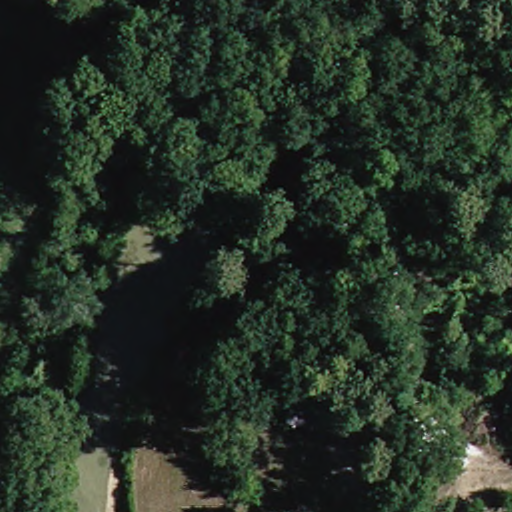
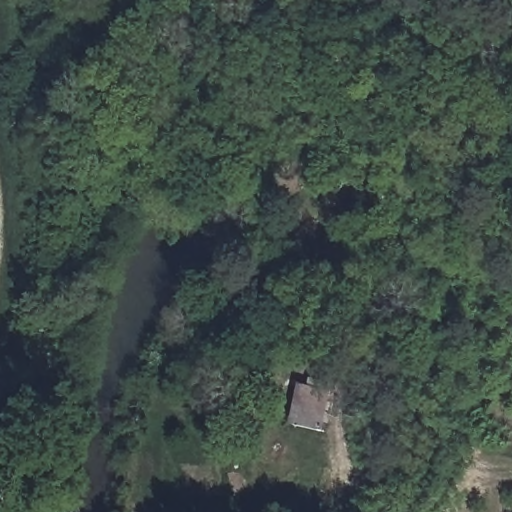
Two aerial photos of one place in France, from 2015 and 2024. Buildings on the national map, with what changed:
unchanged [(323,443),(302,433),(292,429),(307,391),(316,393),(340,403),(323,443)]

